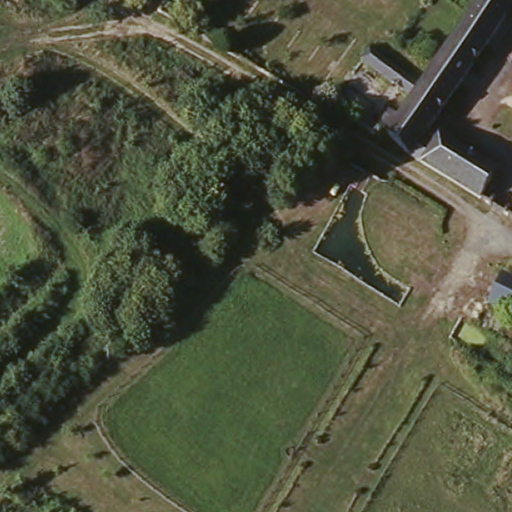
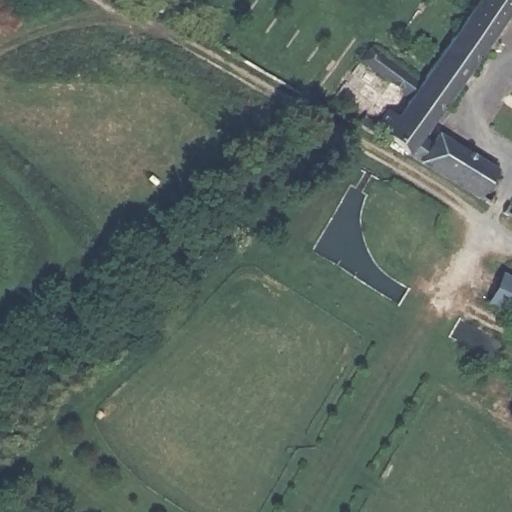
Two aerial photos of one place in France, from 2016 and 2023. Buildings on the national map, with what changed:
unchanged [(483,198),(439,171),(427,162),(412,151),(383,128),(384,124),(393,111),(402,116),(415,96),(365,61),(375,48),(425,83),(484,0),(512,0),(512,13),(428,137),(436,143),(441,135),(498,174),(494,179),(506,187),(493,205),(483,198)]
unchanged [(512,309),(492,298),(508,270),(512,272),(512,309)]

